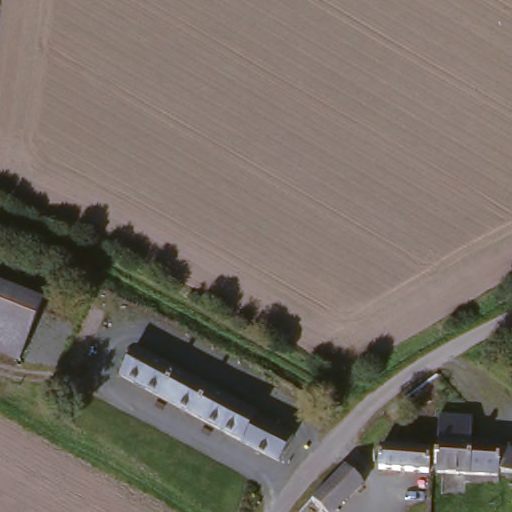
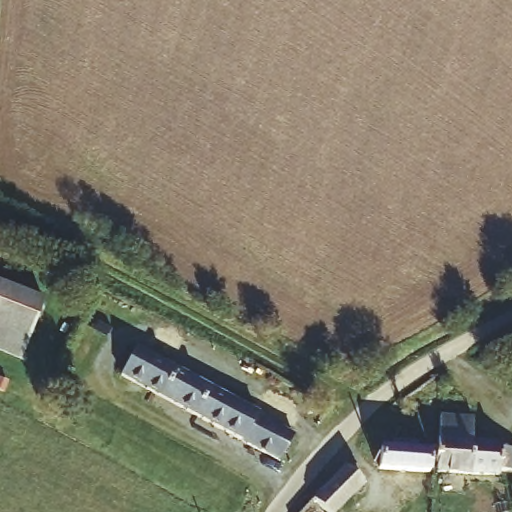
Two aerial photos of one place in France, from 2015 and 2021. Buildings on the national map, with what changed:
unchanged [(29,352),(0,346),(0,279),(43,287),(29,352)]
unchanged [(255,407),(254,411),(291,432),(277,455),(118,371),(134,342),(255,407)]
unchanged [(478,471),(469,471),(439,468),(439,457),(439,446),(439,436),(439,417),(452,417),(472,417),(471,427),(471,438),(479,440),(478,471)]
unchanged [(388,446),(388,439),(418,439),(419,446),(439,446),(439,457),(434,457),(432,468),(394,465),(380,464),(381,445),(388,446)]
unchanged [(479,440),(512,442),(512,474),(478,471),(479,440)]
unchanged [(363,442),(379,458),(352,487),(356,494),(334,512),(332,512),(317,492),(363,442)]

